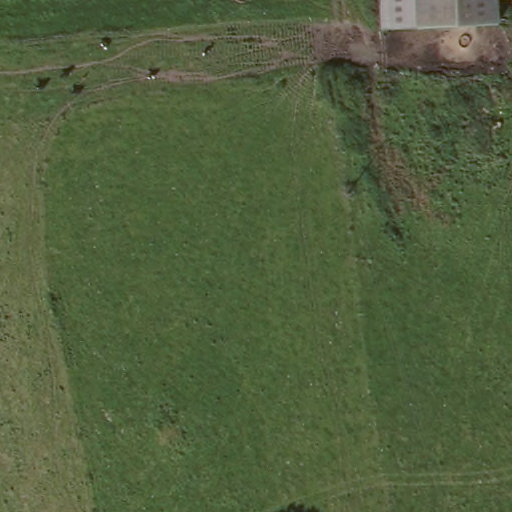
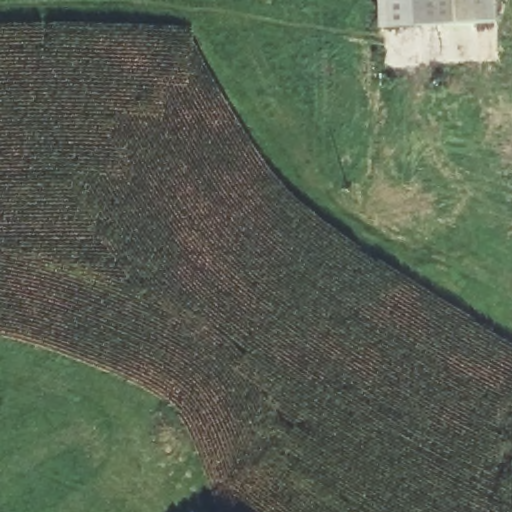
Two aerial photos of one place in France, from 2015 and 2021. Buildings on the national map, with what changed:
unchanged [(384,27),(383,0),(498,0),(499,20),(384,27)]

